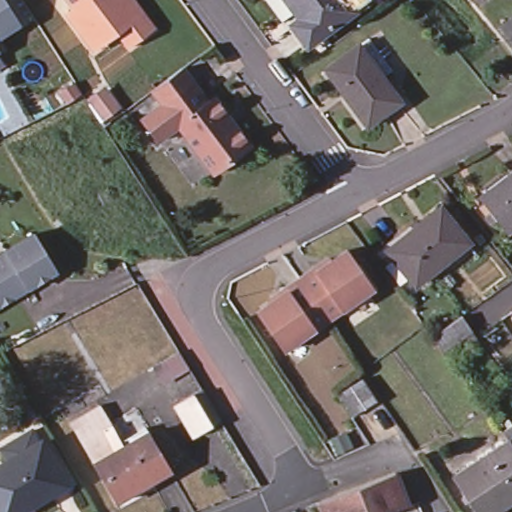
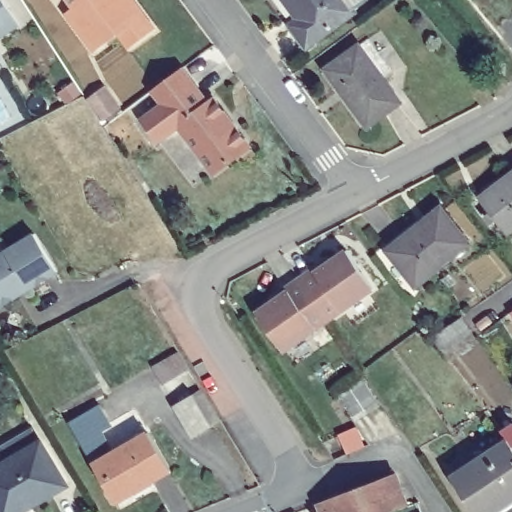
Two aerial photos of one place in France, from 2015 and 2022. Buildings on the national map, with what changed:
unchanged [(0,38),(0,0),(4,0),(20,25),(0,38)]
unchanged [(135,56),(124,40),(109,52),(102,42),(97,45),(88,44),(75,27),(77,20),(78,15),(67,0),(131,0),(160,39),(135,56)]
unchanged [(307,42),(275,0),(346,0),(352,9),(307,42)]
unchanged [(352,43),(393,100),(362,124),(319,67),(352,43)]
unchanged [(156,146),(138,123),(167,102),(157,87),(178,71),(189,86),(205,107),(175,131),(156,146)]
unchanged [(212,102),(247,150),(210,178),(175,131),(205,107),(212,102)]
unchanged [(478,197),(512,171),(512,225),(504,231),(478,197)]
unchanged [(441,204),(469,240),(415,281),(387,245),(441,204)]
unchanged [(0,306),(0,257),(35,235),(58,273),(29,290),(13,300),(2,306),(0,306)]
unchanged [(302,283),(315,274),(318,276),(350,255),(375,293),(329,323),(302,283)]
unchanged [(284,300),(290,296),(288,292),(302,283),(329,323),(308,338),(284,300)]
unchanged [(283,354),(259,317),(284,300),(308,338),(283,354)]
unchanged [(511,317),(512,317),(512,319),(511,317)]
unchanged [(468,335),(442,352),(433,340),(460,322),(468,335)]
unchanged [(347,397),(366,385),(381,407),(355,423),(341,401),(347,397)]
unchanged [(180,407),(193,399),(203,393),(222,423),(212,430),(197,438),(180,407)]
unchanged [(500,508),(497,503),(485,512),(458,512),(437,481),(509,434),(503,425),(512,420),(512,501),(500,508)]
unchanged [(143,431),(165,468),(112,500),(90,463),(143,431)]
unchanged [(65,485),(26,508),(23,504),(9,512),(0,512),(0,465),(38,442),(65,485)]
unchanged [(315,506),(393,477),(404,510),(398,512),(317,512),(315,506)]

